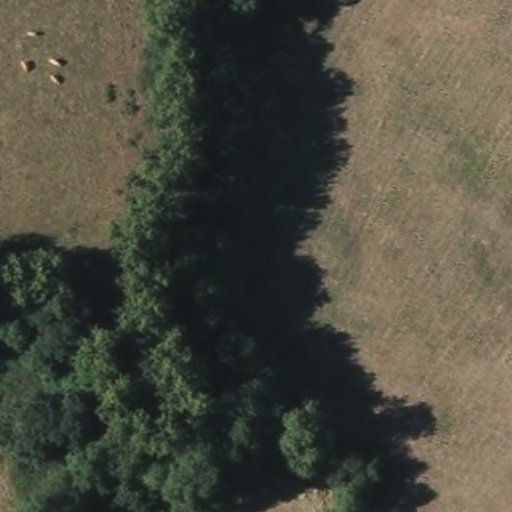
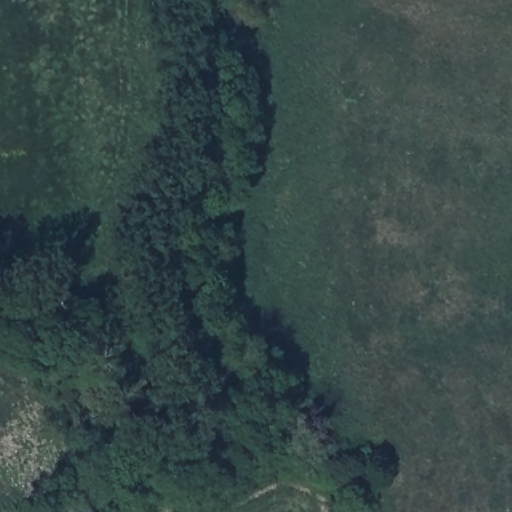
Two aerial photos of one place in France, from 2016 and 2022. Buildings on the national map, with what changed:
[]

